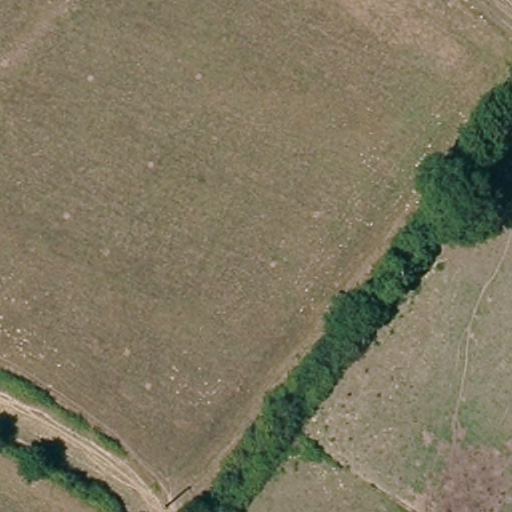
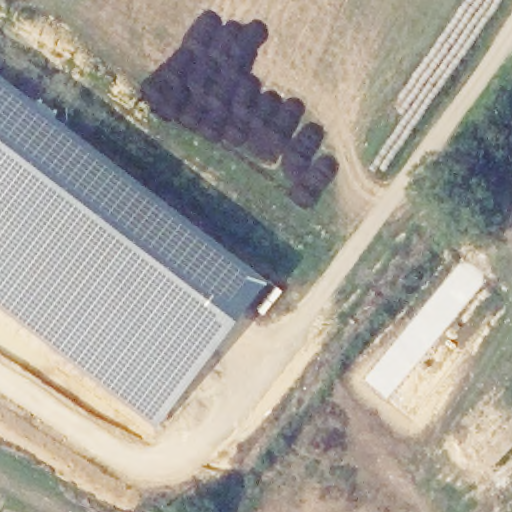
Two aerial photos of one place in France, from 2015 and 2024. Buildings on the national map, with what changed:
new [(272,280),(158,429),(0,308),(0,71),(272,280)]

